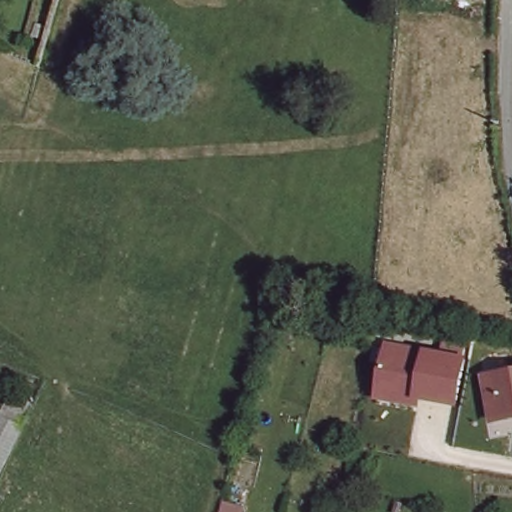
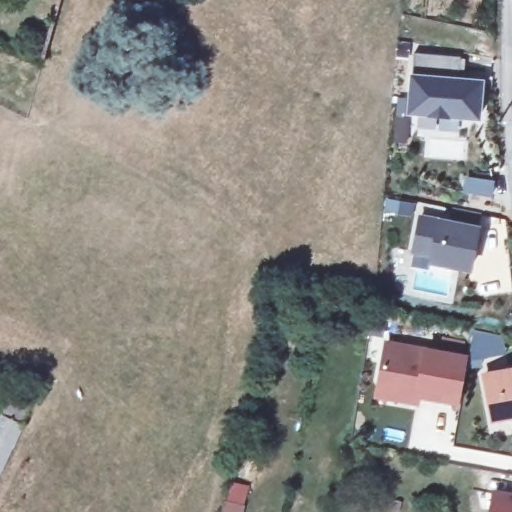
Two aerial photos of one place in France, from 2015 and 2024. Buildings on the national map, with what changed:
new [(410,74),(414,55),(465,59),(460,77),(483,79),(478,121),(406,114),(410,74)]
new [(417,216),(437,218),(480,226),(470,273),(427,264),(427,257),(410,254),(417,216)]
unchanged [(457,407),(423,401),(421,407),(373,399),(385,340),(469,356),(457,407)]
unchanged [(491,423),(480,372),(512,366),(512,420),(491,423)]
unchanged [(20,429),(9,455),(0,475),(0,411),(24,421),(20,429)]
new [(487,512),(492,488),(512,493),(512,512),(487,512)]

